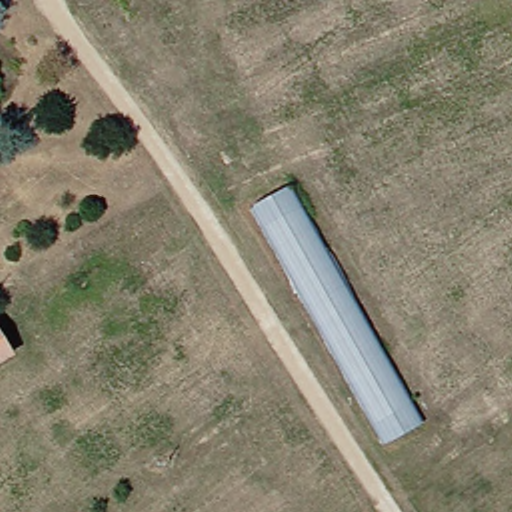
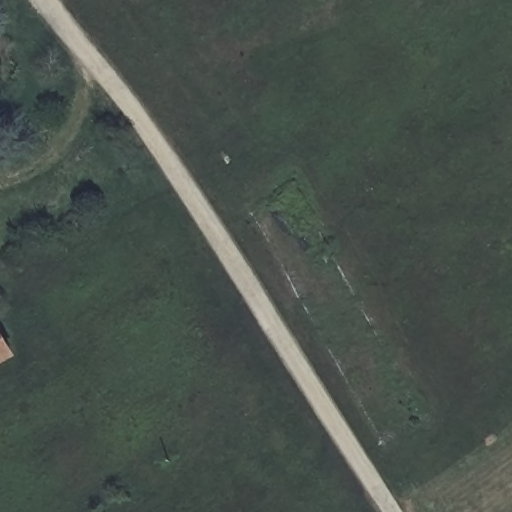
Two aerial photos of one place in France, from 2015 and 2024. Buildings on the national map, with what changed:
demolished [(413,424),(378,443),(244,205),(280,191),(413,424)]
unchanged [(0,351),(2,354),(0,355),(0,351)]

